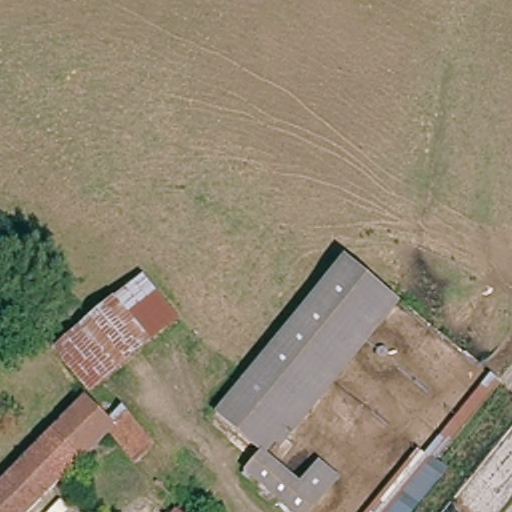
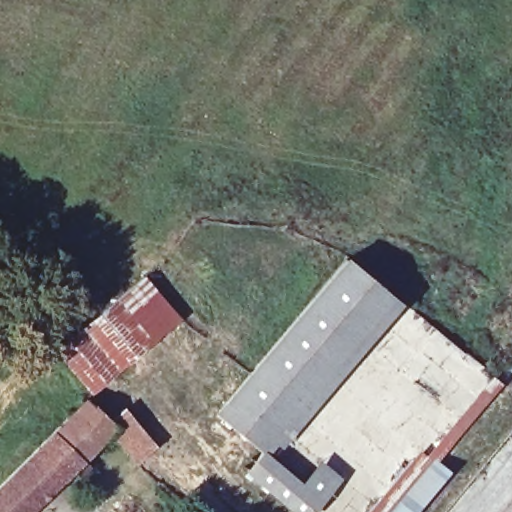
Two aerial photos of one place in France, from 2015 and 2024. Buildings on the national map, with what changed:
unchanged [(264,452),(220,414),(345,261),(348,259),(356,265),(393,296),(264,452)]
unchanged [(125,363),(89,328),(135,280),(171,316),(125,363)]
unchanged [(80,338),(117,374),(99,393),(73,367),(61,356),(66,351),(80,338)]
unchanged [(110,418),(142,451),(129,464),(101,436),(86,450),(98,463),(85,477),(74,466),(26,512),(0,512),(0,483),(42,441),(93,389),(116,412),(110,418)]
unchanged [(125,403),(158,435),(142,451),(110,418),(116,412),(125,403)]
unchanged [(417,512),(368,512),(418,446),(448,471),(417,512)]
unchanged [(341,484),(324,503),(316,512),(292,512),(247,473),(264,452),(305,487),(324,467),(341,484)]
unchanged [(180,505),(186,512),(173,512),(175,510),(180,505)]

